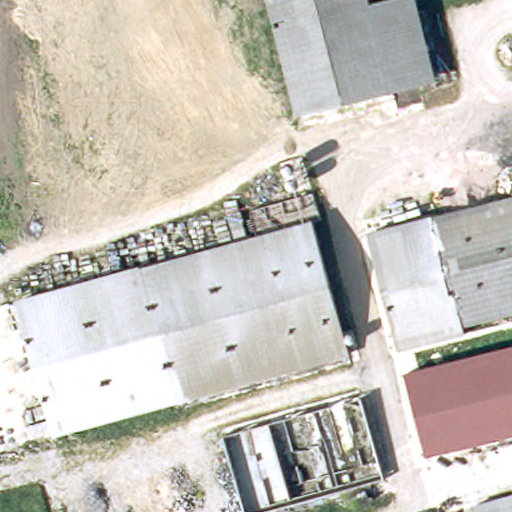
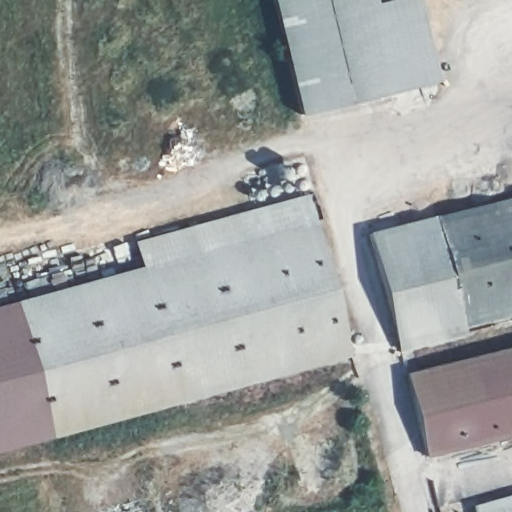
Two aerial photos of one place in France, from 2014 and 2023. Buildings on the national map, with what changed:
unchanged [(323,110),(294,117),(266,0),(296,0),(323,110)]
unchanged [(389,94),(323,110),(296,0),(364,0),(366,6),(389,94)]
unchanged [(420,86),(389,94),(366,6),(390,0),(398,0),(420,86)]
unchanged [(432,83),(420,86),(398,0),(410,0),(432,83)]
new [(306,193),(313,220),(142,266),(134,241),(306,193)]
unchanged [(465,324),(438,216),(512,198),(512,312),(465,324)]
unchanged [(465,324),(466,334),(397,351),(367,234),(438,216),(465,324)]
unchanged [(350,354),(177,400),(142,266),(313,220),(350,354)]
unchanged [(177,400),(52,436),(15,300),(142,266),(177,400)]
new [(52,436),(0,451),(0,305),(15,300),(52,436)]
unchanged [(428,447),(410,372),(512,347),(512,427),(428,447)]
demolished [(359,401),(380,481),(264,512),(239,512),(219,437),(359,401)]

